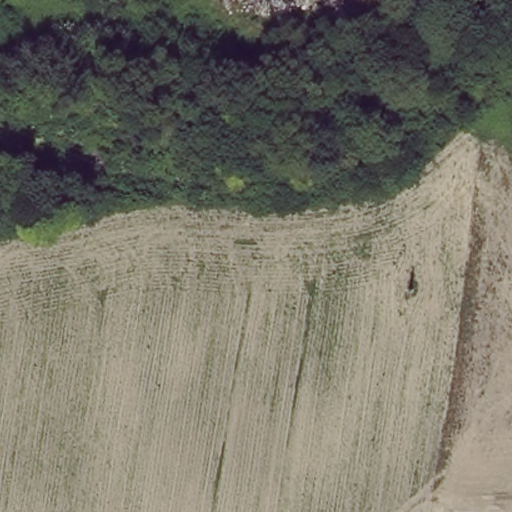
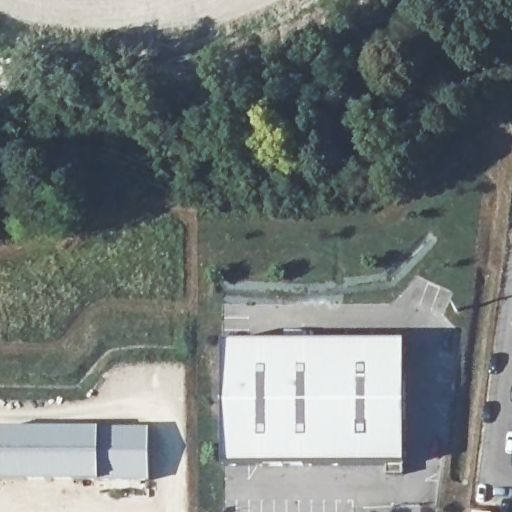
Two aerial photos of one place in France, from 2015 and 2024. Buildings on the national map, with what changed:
new [(401,357),(400,475),(220,476),(216,355),(401,357)]
new [(147,490),(0,490),(0,433),(147,434),(147,490)]
new [(512,446),(512,466),(511,465),(512,446)]

